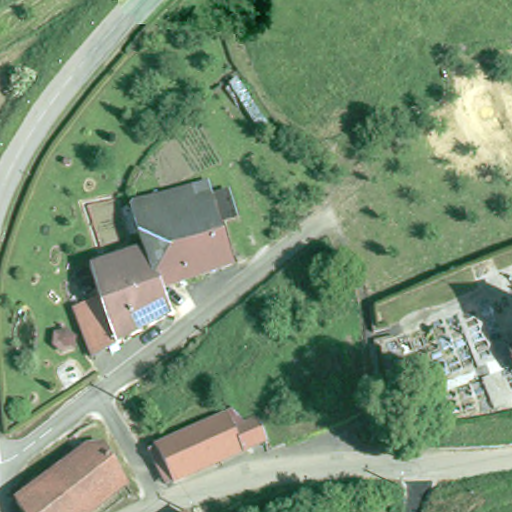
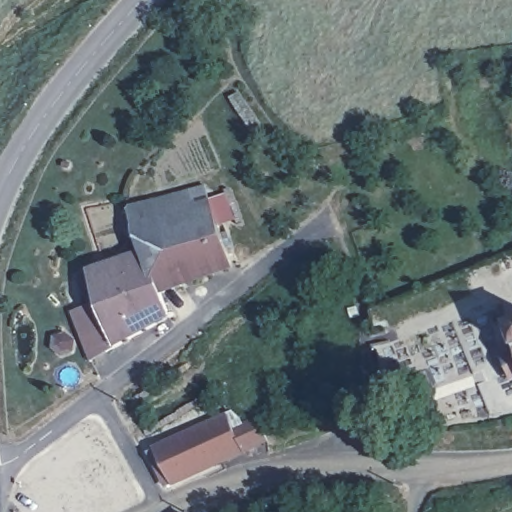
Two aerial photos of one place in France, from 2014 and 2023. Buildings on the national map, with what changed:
unchanged [(190,186),(195,201),(210,197),(231,259),(185,275),(180,280),(158,288),(142,246),(137,231),(133,216),(132,206),(161,197),(190,186)]
unchanged [(168,310),(116,340),(104,309),(100,297),(88,267),(142,246),(158,288),(168,310)]
unchanged [(104,309),(116,340),(88,360),(70,315),(100,297),(104,309)]
unchanged [(508,354),(512,353),(512,363),(508,354)]
unchanged [(160,470),(153,473),(150,464),(155,460),(149,448),(225,410),(235,422),(250,417),(260,438),(166,483),(160,470)]
demolished [(16,504),(86,449),(101,448),(125,485),(91,512),(21,512),(16,504)]
unchanged [(274,512),(241,512),(239,502),(268,494),(274,512)]

